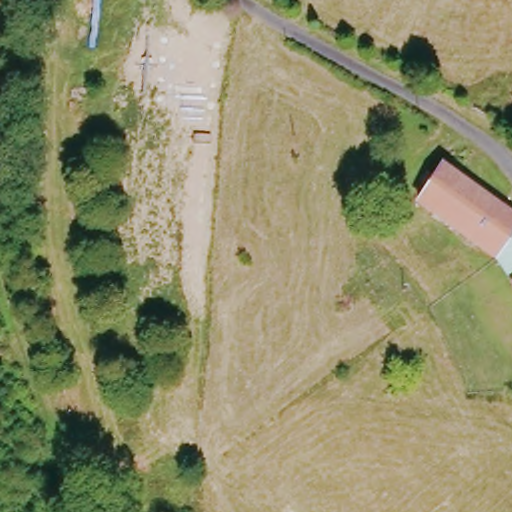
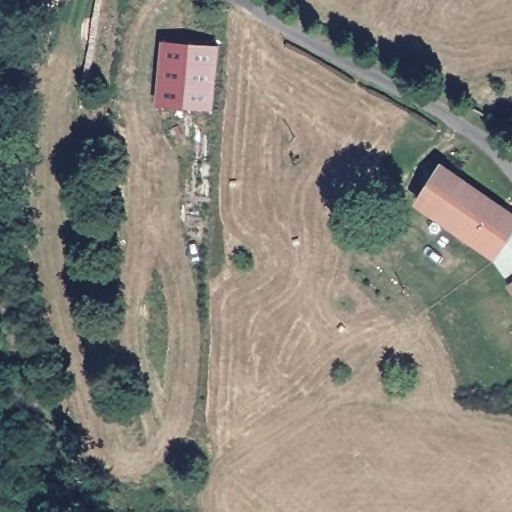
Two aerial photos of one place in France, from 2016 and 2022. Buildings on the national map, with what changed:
new [(220,45),(213,110),(157,104),(163,39),(220,45)]
unchanged [(512,215),(512,227),(490,255),(417,198),(442,162),(495,202),(512,215)]

